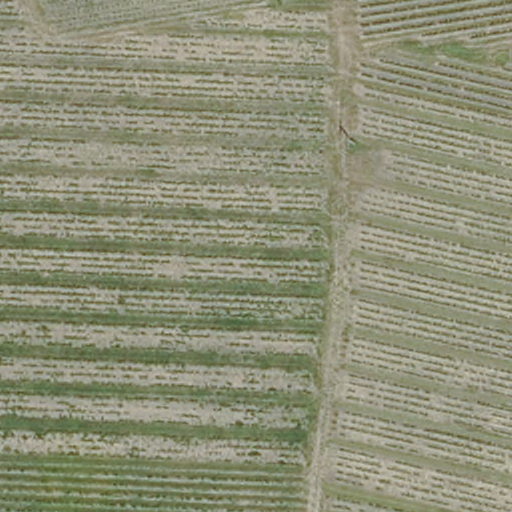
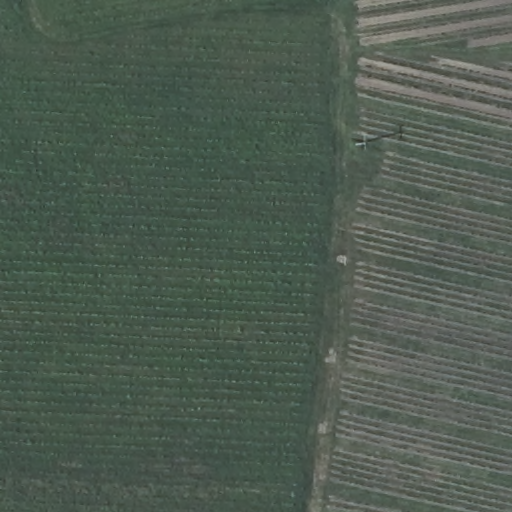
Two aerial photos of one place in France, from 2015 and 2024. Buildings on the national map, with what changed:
[]

